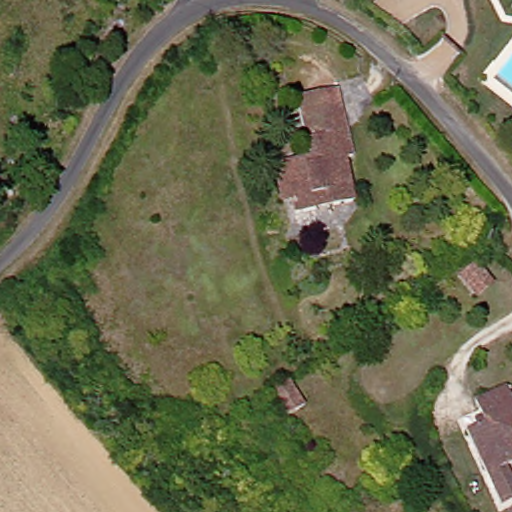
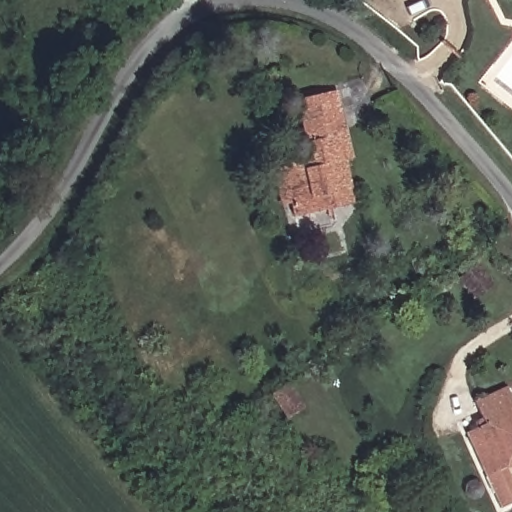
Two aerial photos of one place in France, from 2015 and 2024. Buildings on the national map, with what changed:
unchanged [(301,218),(296,202),(288,204),(279,167),(288,165),(308,160),(314,159),(301,101),(341,91),(357,159),(351,160),(361,203),(338,209),(321,213),(301,218)]
unchanged [(304,407),(288,418),(272,395),(289,384),(304,407)]
unchanged [(510,468),(512,473),(512,506),(504,509),(470,434),(489,425),(479,402),(512,387),(512,389),(512,468),(510,468)]

